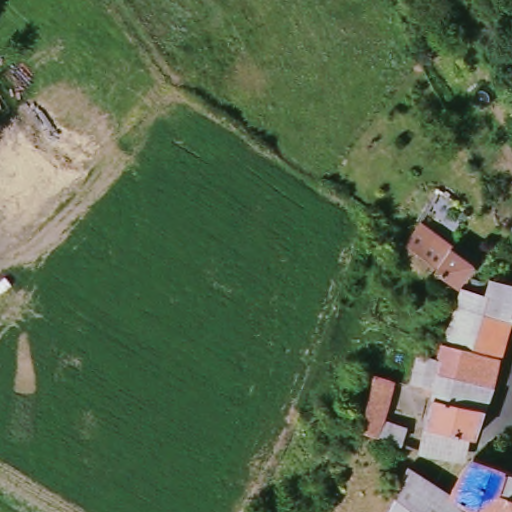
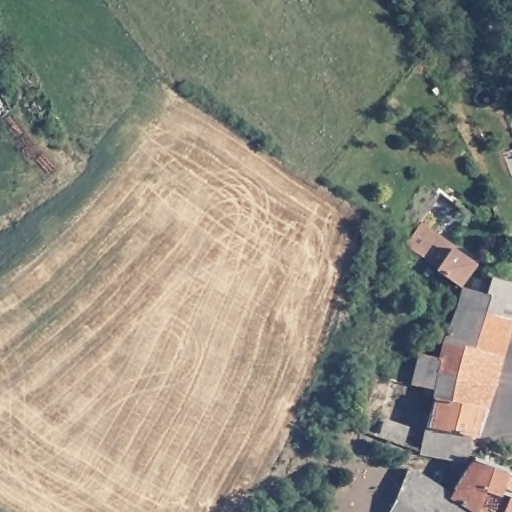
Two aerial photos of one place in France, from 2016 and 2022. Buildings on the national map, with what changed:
unchanged [(416,220),(450,247),(471,263),(454,285),(433,270),(399,242),(416,220)]
unchanged [(438,368),(462,292),(485,298),(491,277),(512,283),(512,323),(506,322),(486,386),(436,374),(438,368)]
unchanged [(426,399),(407,393),(415,363),(438,368),(436,374),(486,386),(472,435),(454,454),(415,449),(419,429),(426,399)]
unchanged [(380,421),(398,426),(396,441),(359,429),(376,374),(391,379),(380,421)]
unchanged [(453,499),(463,464),(466,461),(499,474),(486,512),(479,512),(453,499)]
unchanged [(407,474),(437,489),(435,497),(458,512),(386,512),(407,474)]
unchanged [(499,474),(512,479),(512,512),(486,512),(499,474)]

